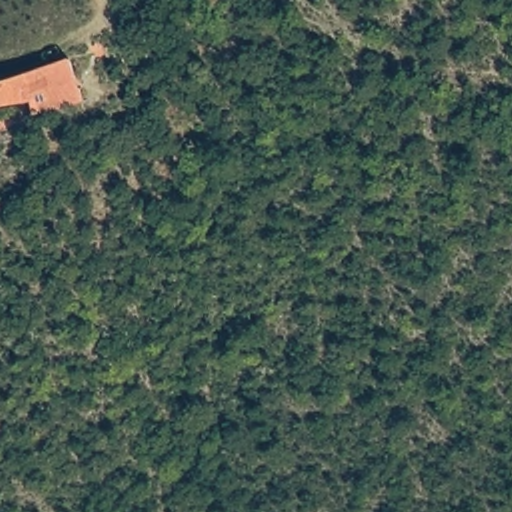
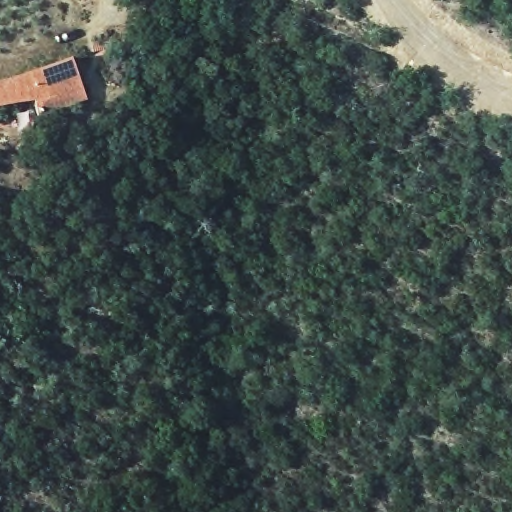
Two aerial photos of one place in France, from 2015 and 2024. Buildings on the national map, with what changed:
unchanged [(50,124),(41,104),(0,112),(0,76),(72,58),(86,115),(50,124)]

